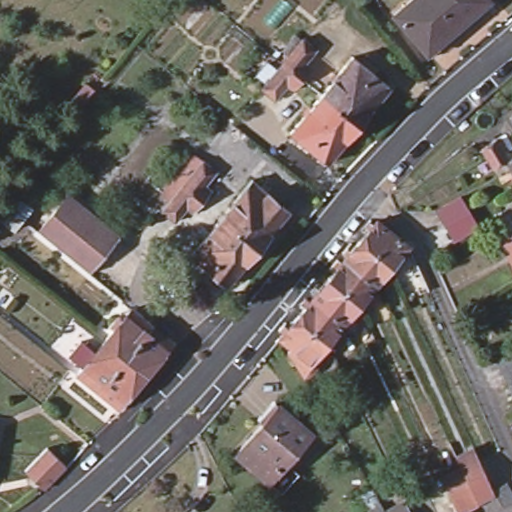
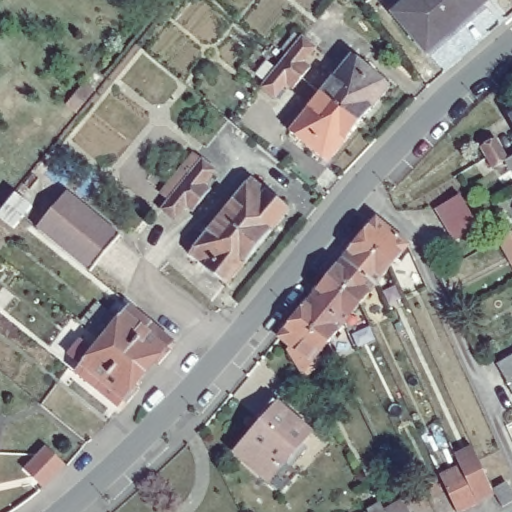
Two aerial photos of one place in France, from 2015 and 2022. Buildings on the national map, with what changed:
unchanged [(489,0),(428,51),(395,13),(410,0),(489,0)]
unchanged [(287,90),(277,104),(262,93),(267,85),(259,79),(269,66),(277,73),(282,67),(288,59),(282,54),(294,40),(300,44),(302,42),(316,54),(306,68),(311,73),(302,84),(294,94),(287,90)]
unchanged [(359,125),(322,94),(353,56),(390,88),(359,125)]
unchanged [(359,125),(330,162),(292,131),(322,94),(359,125)]
unchanged [(502,144),(509,155),(495,164),(488,153),(482,144),(497,135),(502,144)]
unchanged [(509,155),(512,153),(512,160),(509,155)]
unchanged [(217,177),(203,195),(209,199),(195,218),(188,213),(177,227),(163,215),(172,203),(164,196),(187,168),(193,159),(202,167),(204,164),(217,177)]
unchanged [(290,209),(227,285),(192,254),(252,179),(290,209)]
unchanged [(0,212),(8,202),(17,190),(32,202),(22,214),(14,225),(0,215),(0,212)]
unchanged [(92,269),(39,227),(67,192),(120,233),(92,269)]
unchanged [(448,227),(440,208),(465,195),(475,212),(448,227)]
unchanged [(409,244),(393,264),(362,239),(361,239),(377,219),(409,244)]
unchanged [(344,259),(361,239),(362,239),(393,264),(376,285),(344,259)]
unchanged [(376,285),(360,304),(329,279),(344,259),(376,285)]
unchanged [(413,285),(407,270),(419,264),(426,280),(413,285)]
unchanged [(312,298),(329,279),(360,304),(344,324),(312,298)]
unchanged [(297,317),(312,298),(344,324),(327,343),(297,317)]
unchanged [(149,329),(122,362),(102,346),(112,334),(107,329),(119,317),(123,320),(129,314),(149,329)]
unchanged [(315,391),(303,372),(280,337),(297,317),(327,343),(311,363),(327,383),(315,391)]
unchanged [(169,346),(142,377),(122,362),(149,329),(169,346)]
unchanged [(75,378),(81,371),(67,359),(79,345),(93,357),(102,346),(122,362),(96,394),(75,378)]
unchanged [(510,382),(500,365),(512,358),(512,386),(510,382)]
unchanged [(116,409),(96,394),(122,362),(142,377),(116,409)]
unchanged [(261,422),(256,418),(271,399),(276,402),(312,429),(311,430),(272,480),(237,454),(261,422)]
unchanged [(52,462),(59,454),(66,447),(77,457),(71,464),(64,472),(52,462)]
unchanged [(457,470),(451,458),(469,449),(477,466),(491,458),(502,452),(512,469),(500,476),(487,484),(492,493),(461,512),(454,512),(451,505),(441,487),(437,482),(457,470)]
unchanged [(412,512),(367,512),(366,511),(383,501),(387,508),(405,498),(412,512)]

